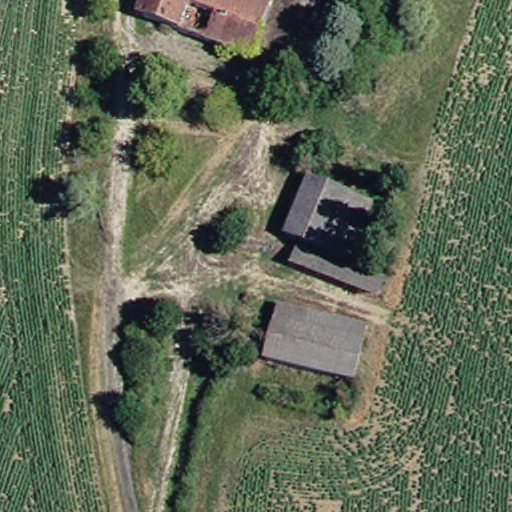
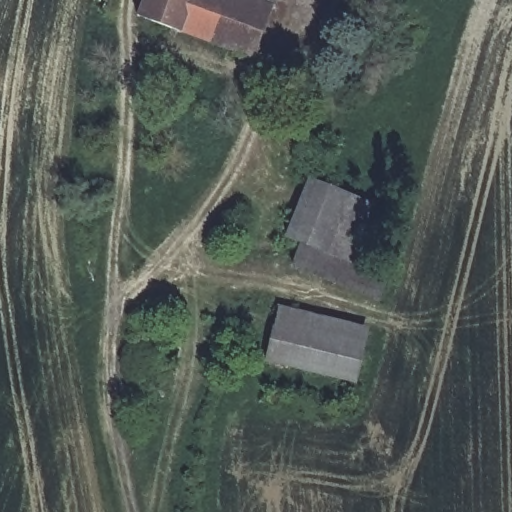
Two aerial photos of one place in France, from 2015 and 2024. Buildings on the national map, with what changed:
unchanged [(145,0),(268,0),(275,2),(257,55),(141,12),(145,0)]
unchanged [(268,0),(276,0),(275,2),(268,0)]
unchanged [(351,262),(291,236),(315,181),(374,206),(351,262)]
unchanged [(385,284),(377,300),(296,265),(303,247),(385,284)]
unchanged [(358,378),(270,356),(282,314),(369,333),(358,378)]

